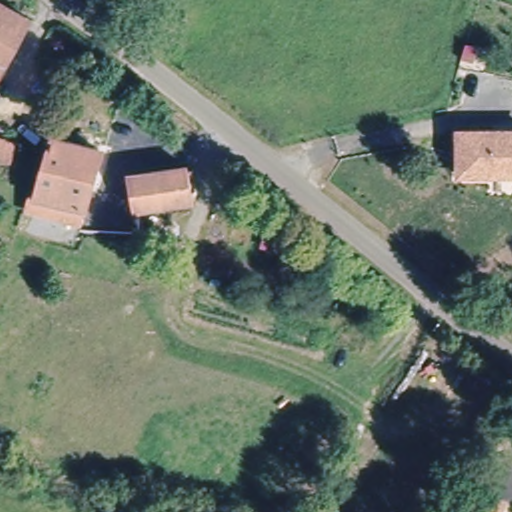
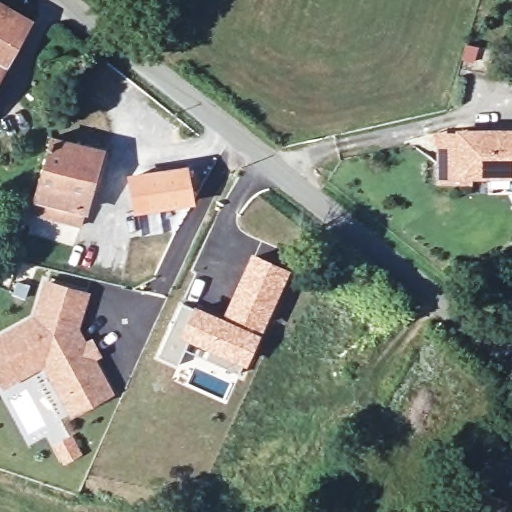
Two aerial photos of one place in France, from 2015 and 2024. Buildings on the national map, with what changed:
unchanged [(3,0),(26,13),(0,61),(0,0),(3,0)]
unchanged [(459,163),(459,134),(512,133),(512,177),(459,178),(459,163)]
unchanged [(37,193),(54,134),(103,145),(81,220),(28,206),(33,192),(37,193)]
demolished [(0,162),(0,138),(16,144),(9,165),(0,162)]
unchanged [(191,203),(135,211),(129,176),(186,169),(191,203)]
new [(182,302),(222,314),(252,251),(292,268),(266,328),(246,368),(235,363),(232,369),(212,359),(215,354),(189,342),(178,364),(159,354),(182,302)]
new [(90,290),(80,328),(87,341),(91,339),(101,357),(96,361),(115,391),(74,418),(44,364),(4,388),(0,380),(0,333),(34,314),(43,278),(90,290)]
new [(69,434),(77,448),(64,457),(55,443),(69,434)]
unchanged [(500,512),(454,512),(465,488),(476,493),(491,500),(503,506),(500,512)]

